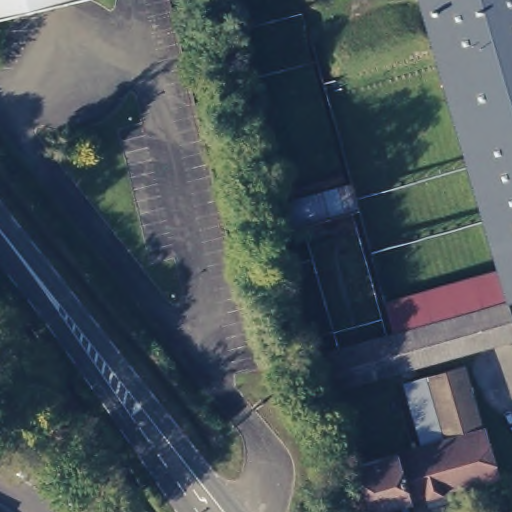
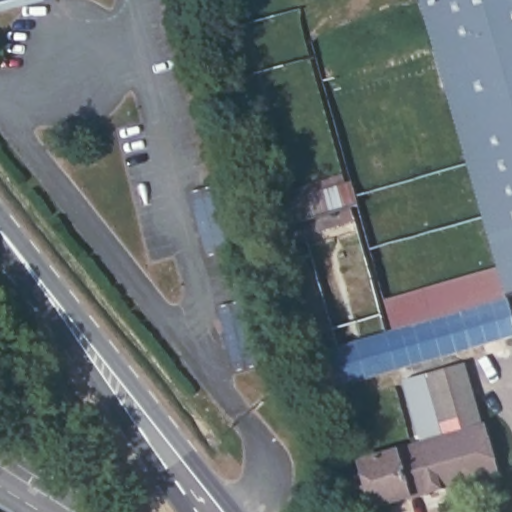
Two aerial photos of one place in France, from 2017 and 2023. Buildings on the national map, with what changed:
unchanged [(89,0),(0,22),(0,0),(89,0)]
unchanged [(420,0),(512,0),(512,237),(490,243),(420,0)]
unchanged [(293,234),(278,201),(350,179),(360,211),(293,234)]
unchanged [(490,243),(512,237),(512,295),(505,296),(497,269),(490,243)]
unchanged [(497,269),(505,296),(507,300),(396,332),(387,300),(497,269)]
unchanged [(310,357),(396,332),(507,300),(512,318),(512,335),(320,391),(310,357)]
unchanged [(470,371),(487,435),(429,451),(410,387),(470,371)]
unchanged [(364,488),(362,483),(368,482),(365,470),(429,451),(487,435),(490,434),(502,477),(381,512),(377,512),(376,508),(370,510),(369,505),(363,507),(358,490),(364,488)]

